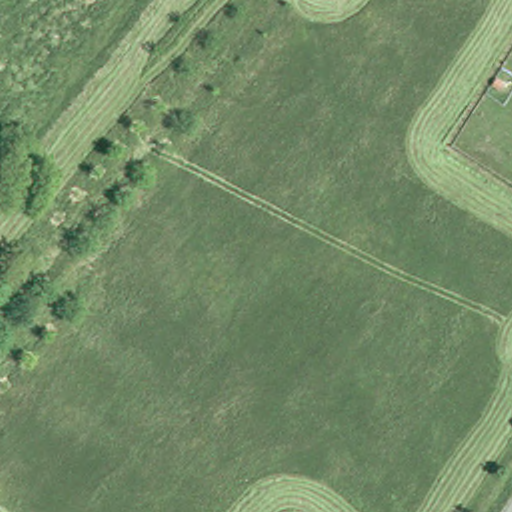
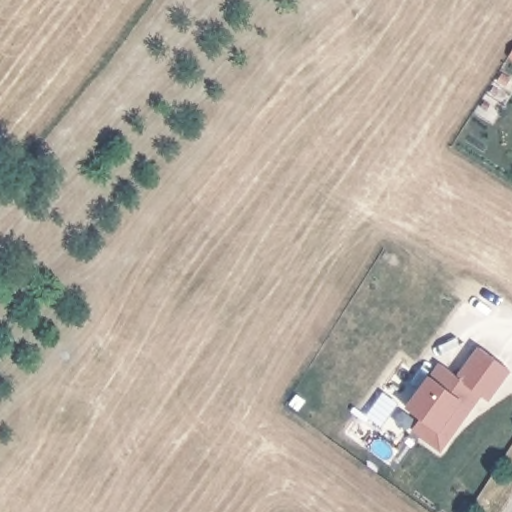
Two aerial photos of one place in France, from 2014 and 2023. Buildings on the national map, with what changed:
new [(415,413),(405,405),(428,374),(428,373),(437,361),(456,373),(477,345),(510,368),(487,399),(477,392),(439,450),(410,430),(415,413)]

